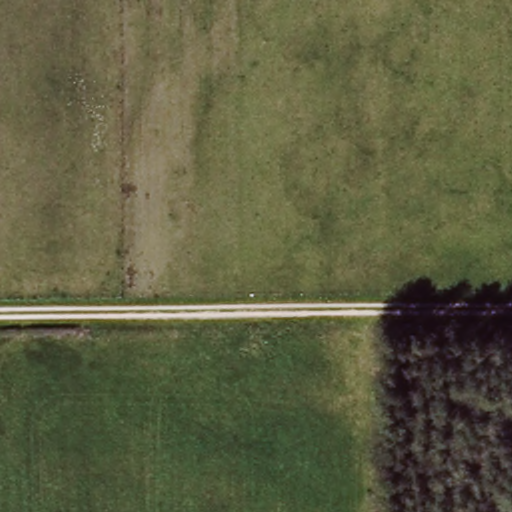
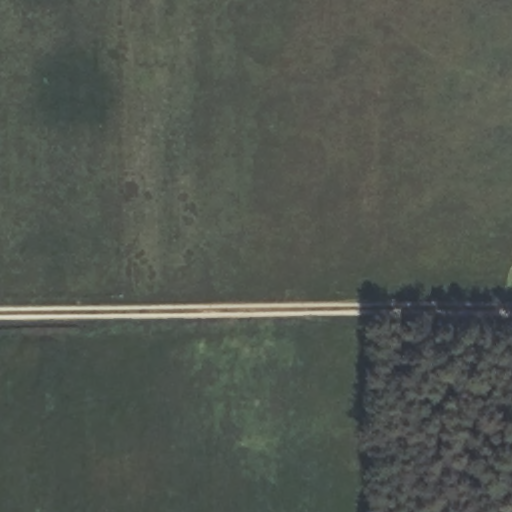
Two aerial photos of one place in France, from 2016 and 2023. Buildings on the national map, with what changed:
[]

